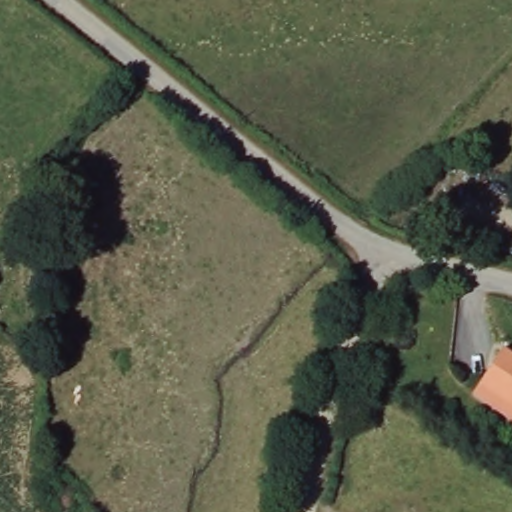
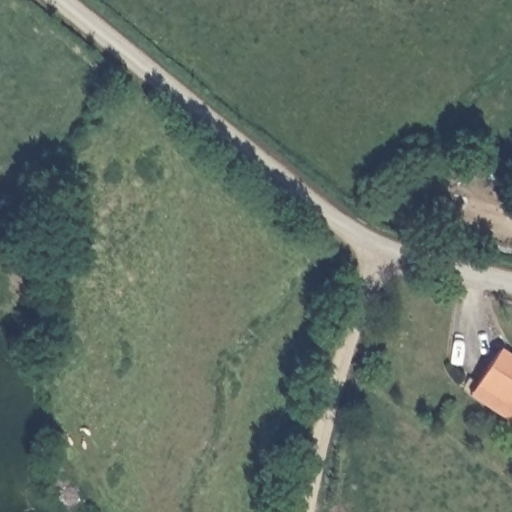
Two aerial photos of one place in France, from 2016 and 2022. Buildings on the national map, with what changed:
unchanged [(512,412),(476,387),(500,355),(512,364),(512,412)]

